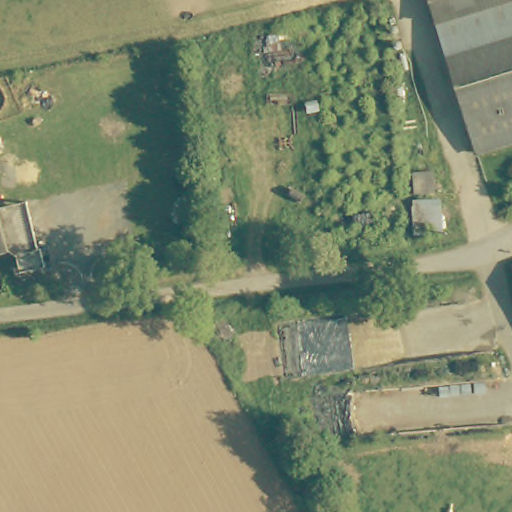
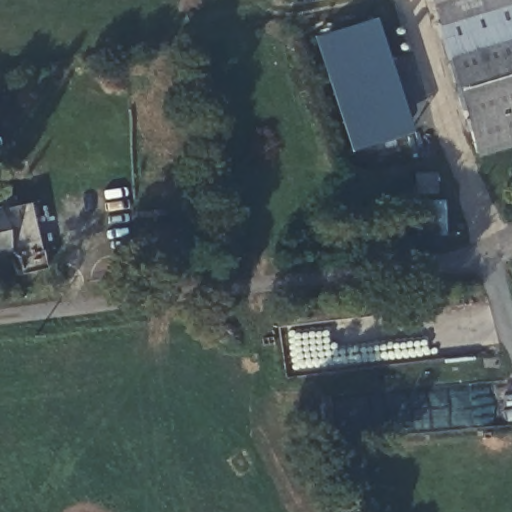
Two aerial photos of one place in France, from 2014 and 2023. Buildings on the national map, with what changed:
unchanged [(438,26),(429,0),(512,0),(512,14),(438,26)]
unchanged [(438,26),(512,14),(512,107),(468,120),(438,26)]
new [(373,22),(412,135),(356,155),(317,41),(373,22)]
unchanged [(480,157),(468,120),(512,107),(512,146),(480,157)]
unchanged [(436,195),(416,197),(415,178),(435,177),(436,195)]
unchanged [(0,205),(25,199),(36,246),(39,245),(43,264),(15,270),(11,253),(3,248),(0,237),(0,205)]
unchanged [(0,249),(0,237),(3,248),(0,249)]
unchanged [(507,280),(512,278),(512,289),(507,280)]

